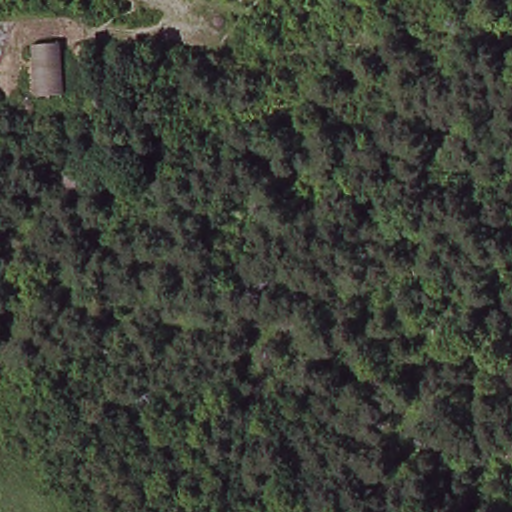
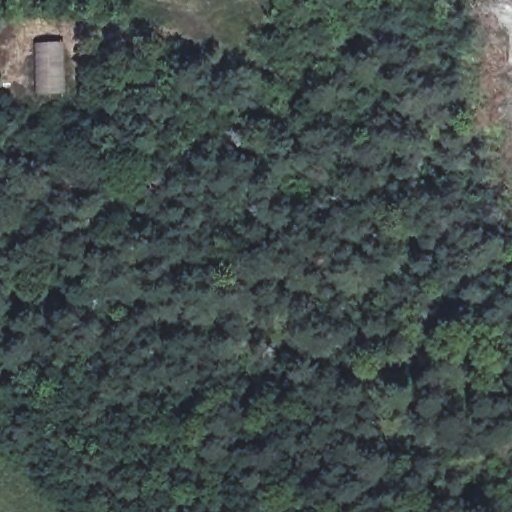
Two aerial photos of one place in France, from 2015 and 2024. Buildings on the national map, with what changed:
unchanged [(69,92),(38,93),(33,43),(65,41),(69,92)]

